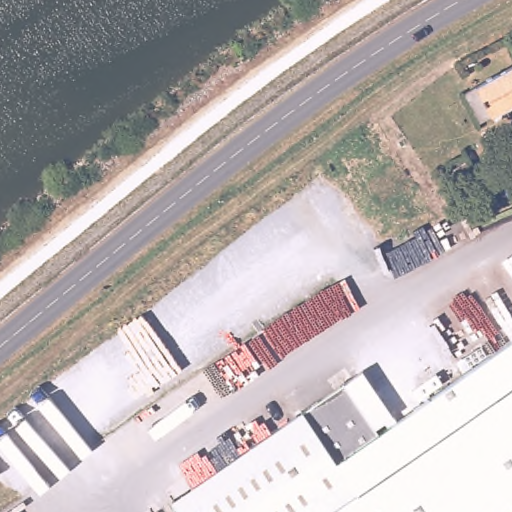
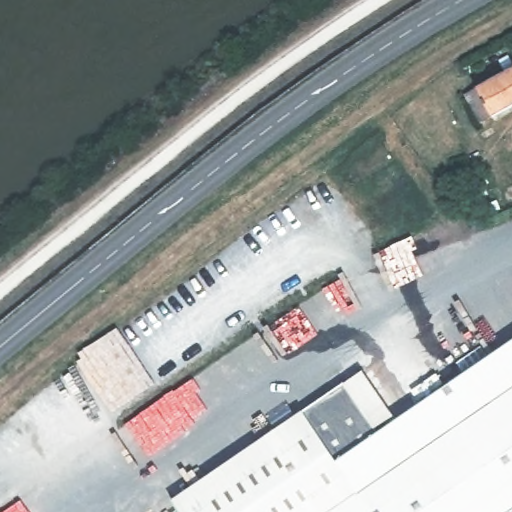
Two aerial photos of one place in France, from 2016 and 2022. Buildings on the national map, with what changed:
unchanged [(472,94),(512,70),(512,107),(488,119),(472,94)]
unchanged [(456,174),(466,168),(477,181),(465,188),(456,174)]
unchanged [(512,509),(508,512),(490,512),(417,406),(512,340),(512,509)]
unchanged [(341,387),(375,436),(417,406),(490,512),(172,512),(167,505),(341,387)]
unchanged [(512,512),(508,512),(512,509),(512,512)]

